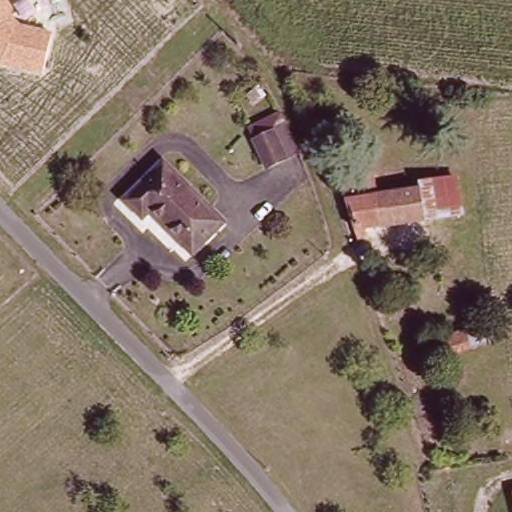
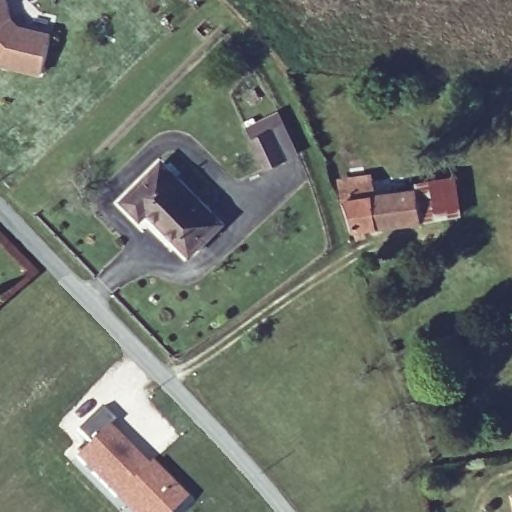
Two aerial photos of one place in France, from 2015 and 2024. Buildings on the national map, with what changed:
unchanged [(12,17),(21,26),(52,32),(42,77),(0,67),(0,0),(7,0),(12,17)]
unchanged [(278,121),(295,155),(262,168),(247,136),(278,121)]
unchanged [(163,172),(217,232),(191,255),(154,216),(141,223),(125,203),(163,172)]
unchanged [(354,238),(343,185),(386,177),(387,192),(426,182),(440,223),(354,238)]
unchanged [(453,178),(463,220),(440,223),(426,182),(453,178)]
new [(71,458),(85,444),(72,431),(97,408),(111,422),(103,429),(141,468),(144,465),(179,503),(170,512),(122,512),(110,499),(71,458)]

